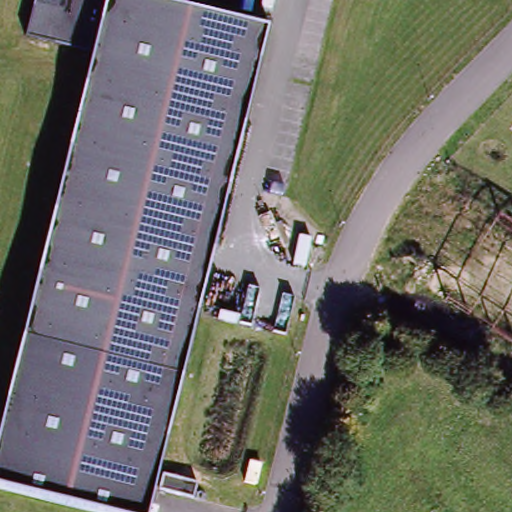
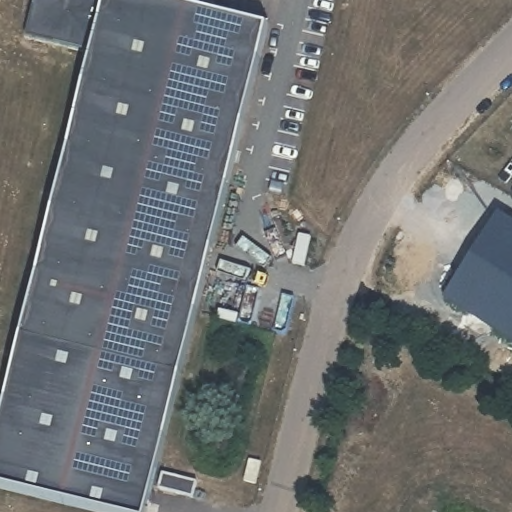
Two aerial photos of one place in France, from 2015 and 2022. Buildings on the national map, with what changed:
unchanged [(25,341),(100,57),(33,40),(43,0),(144,0),(275,35),(182,383),(25,341)]
new [(447,297),(501,212),(512,219),(512,341),(447,297)]
unchanged [(182,383),(150,512),(104,512),(0,486),(0,431),(25,341),(182,383)]
new [(251,462),(262,465),(257,486),(245,483),(251,462)]
new [(199,484),(194,500),(160,490),(164,475),(199,484)]

